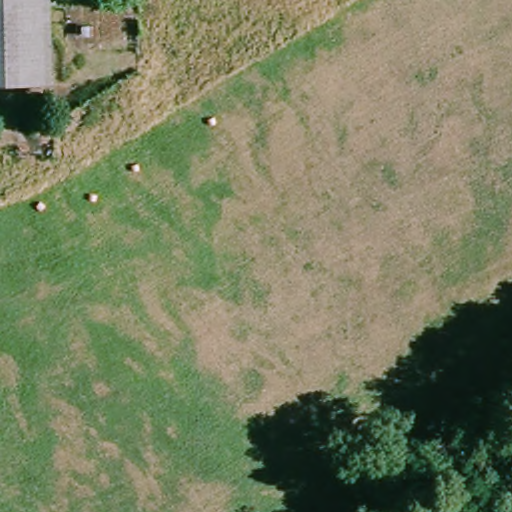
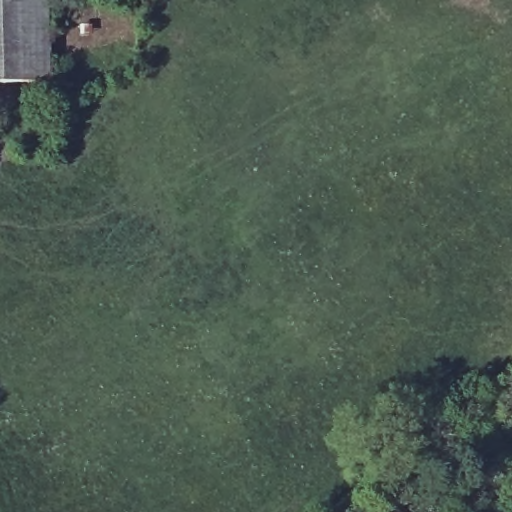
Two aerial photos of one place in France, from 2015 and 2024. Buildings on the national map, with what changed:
unchanged [(0,10),(0,0),(28,0),(28,11),(0,10)]
unchanged [(0,83),(0,10),(28,11),(28,0),(61,0),(64,83),(0,83)]

